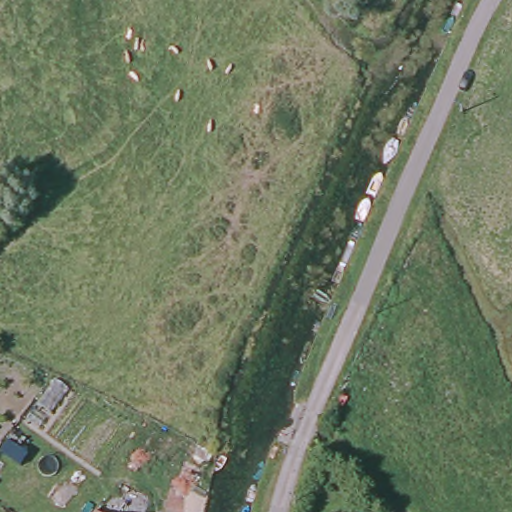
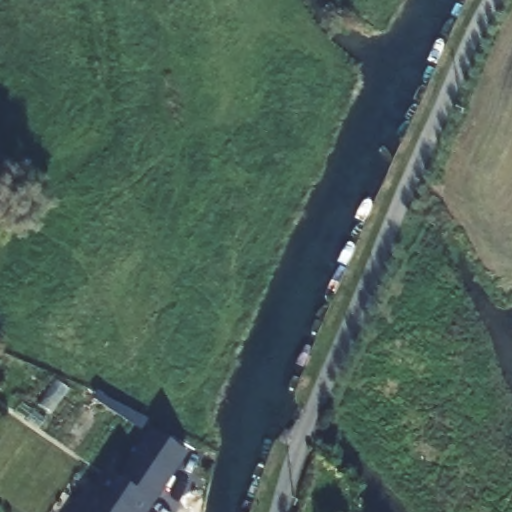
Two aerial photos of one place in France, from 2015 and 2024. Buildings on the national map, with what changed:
new [(119,482),(149,431),(185,450),(146,512),(84,512),(106,475),(119,482)]
demolished [(117,510),(153,449),(187,467),(163,512),(108,512),(111,507),(117,510)]

